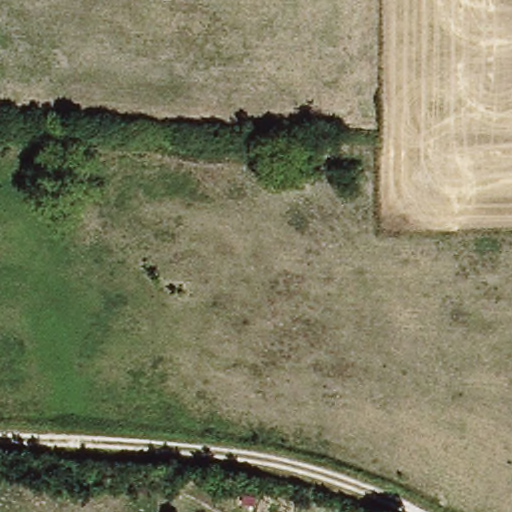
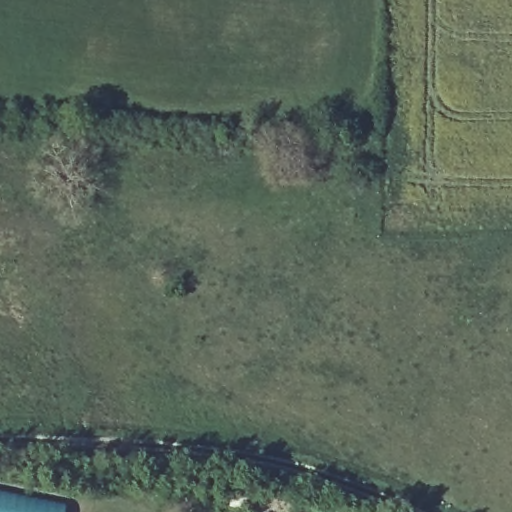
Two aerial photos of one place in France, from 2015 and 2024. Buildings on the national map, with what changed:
new [(63,512),(0,512),(0,489),(65,503),(63,512)]
unchanged [(356,512),(337,512),(343,503),(356,512)]

